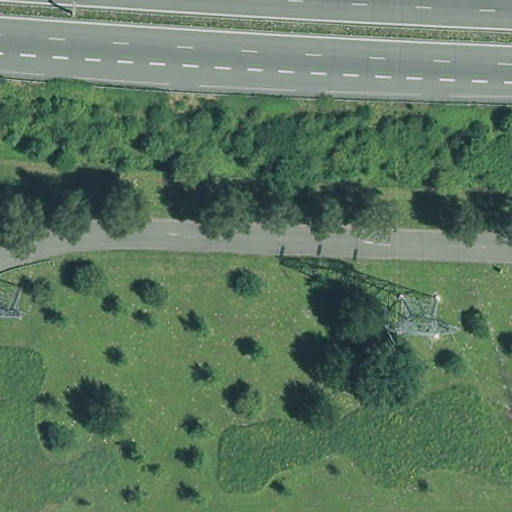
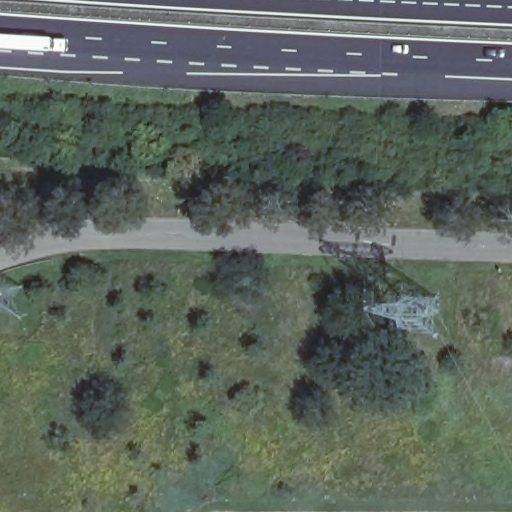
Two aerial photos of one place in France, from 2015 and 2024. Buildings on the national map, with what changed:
[]

